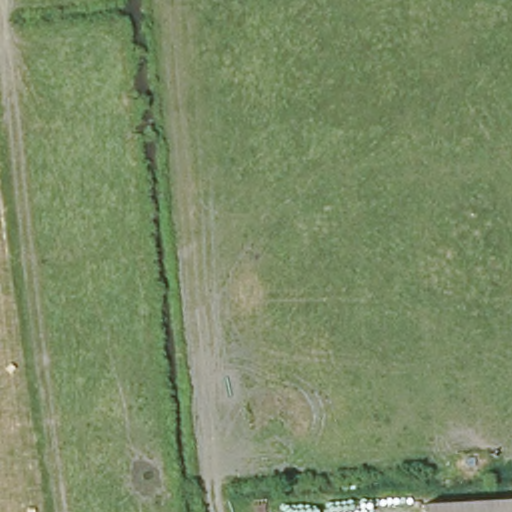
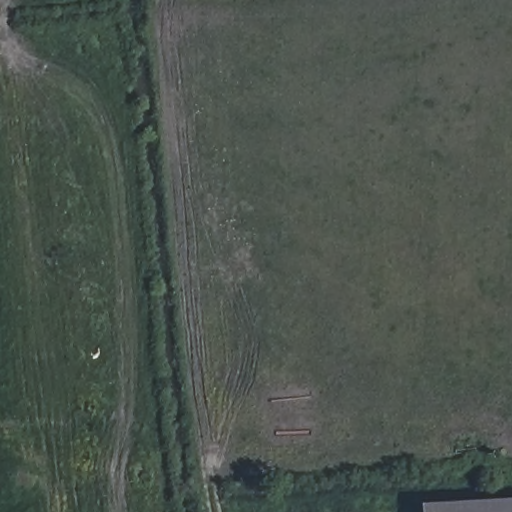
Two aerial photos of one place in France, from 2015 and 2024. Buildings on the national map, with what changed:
unchanged [(418,505),(512,499),(512,512),(419,512),(418,505)]

